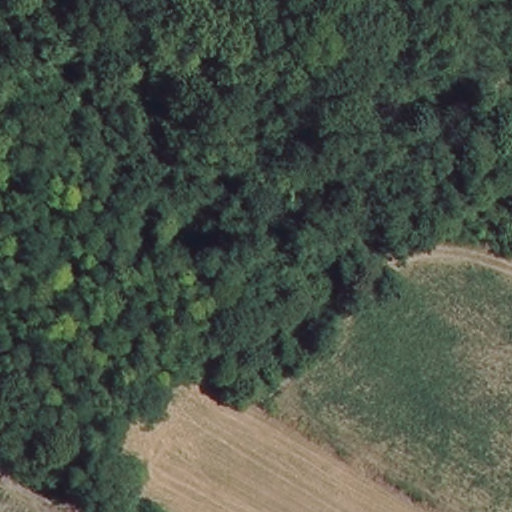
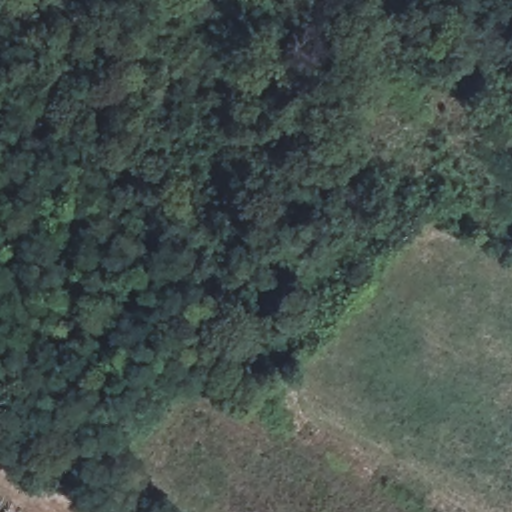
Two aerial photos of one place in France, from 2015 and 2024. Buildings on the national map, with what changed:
unchanged [(91,463),(81,473),(59,453),(69,443),(91,463)]

